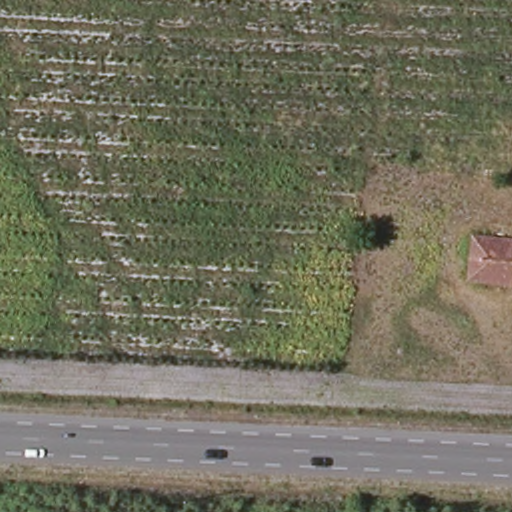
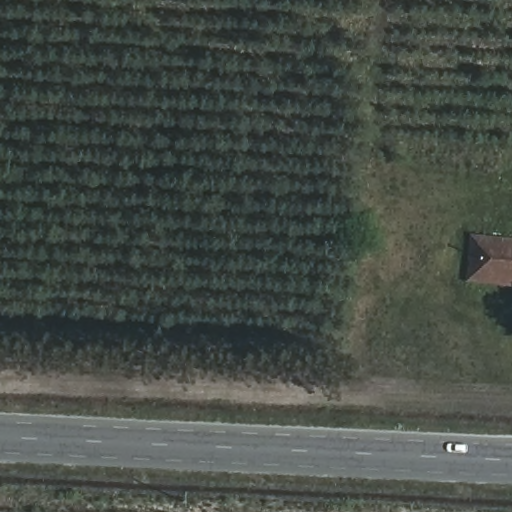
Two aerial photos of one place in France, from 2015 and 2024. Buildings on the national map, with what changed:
unchanged [(455,278),(454,240),(512,241),(512,279),(455,278)]

